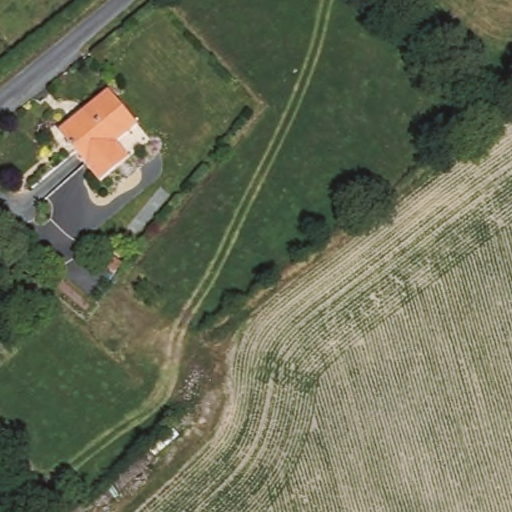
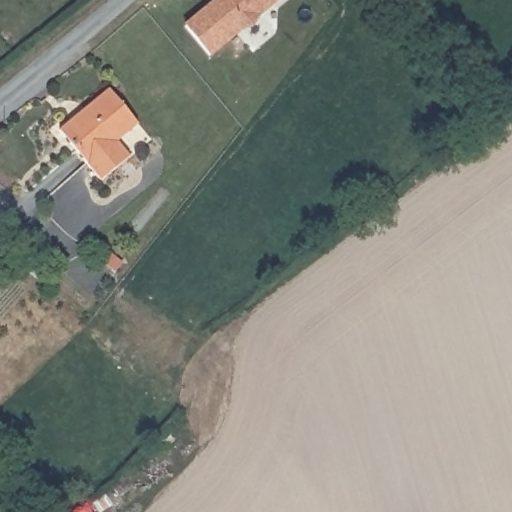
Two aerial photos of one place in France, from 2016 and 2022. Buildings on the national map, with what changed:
new [(185,27),(215,2),(217,0),(276,0),(258,15),(239,31),(209,56),(185,27)]
unchanged [(121,168),(106,181),(93,166),(64,131),(114,90),(143,124),(122,142),(135,157),(121,168)]
unchanged [(1,512),(0,512),(0,468),(17,504),(1,512)]

